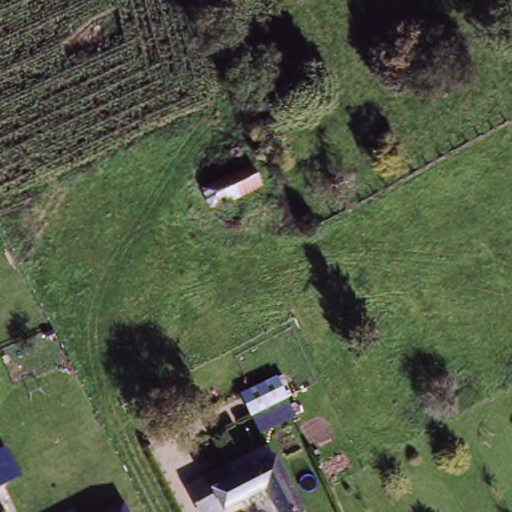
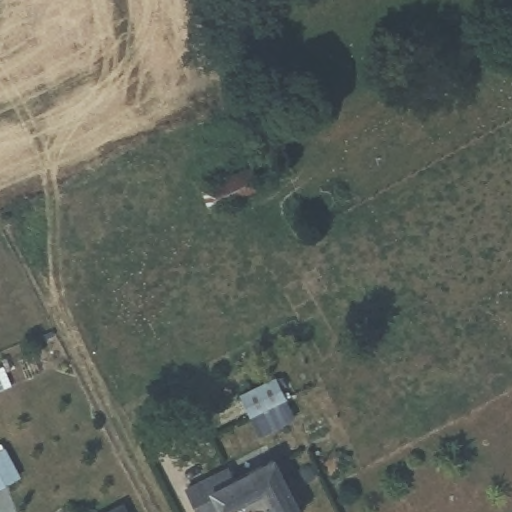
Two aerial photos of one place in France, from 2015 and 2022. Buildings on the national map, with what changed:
unchanged [(201,184),(235,169),(249,163),(258,185),(244,191),(211,206),(201,184)]
unchanged [(278,377),(295,420),(260,438),(239,397),(278,377)]
unchanged [(22,475),(0,486),(0,451),(6,448),(22,475)]
unchanged [(300,512),(280,512),(268,488),(228,508),(217,487),(237,476),(275,457),(287,478),(302,511),(300,512)]
unchanged [(217,487),(228,508),(220,512),(201,512),(188,486),(231,464),(237,476),(217,487)]
unchanged [(123,501),(129,512),(101,512),(123,501)]

